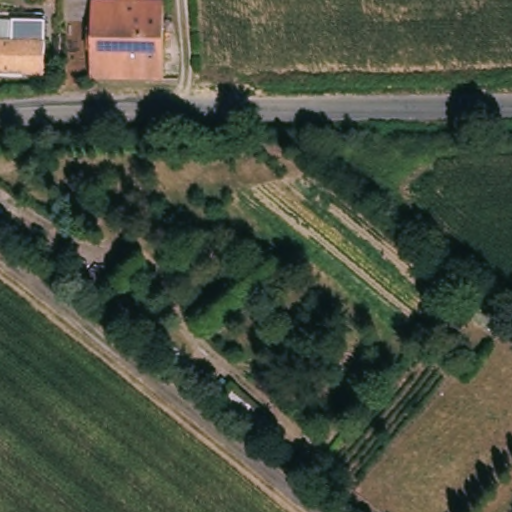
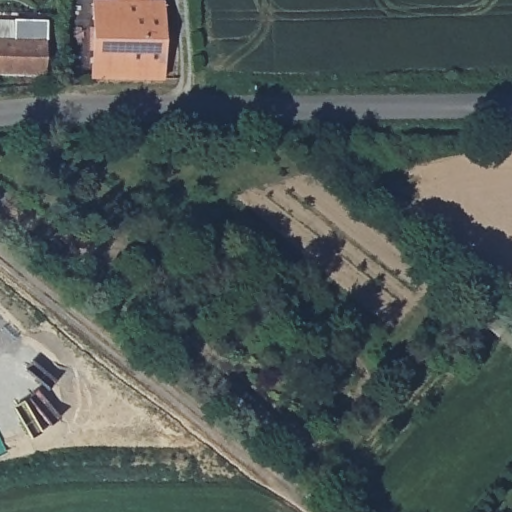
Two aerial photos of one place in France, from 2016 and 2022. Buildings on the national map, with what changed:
unchanged [(95,78),(97,1),(122,3),(123,0),(150,0),(150,3),(169,4),(168,79),(95,78)]
unchanged [(17,40),(50,41),(49,76),(0,75),(0,21),(17,21),(17,40)]

